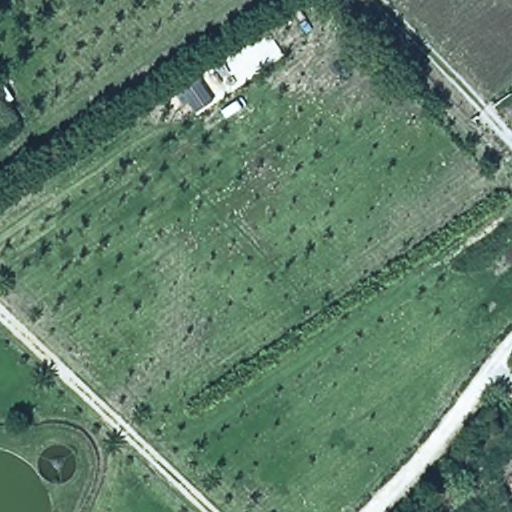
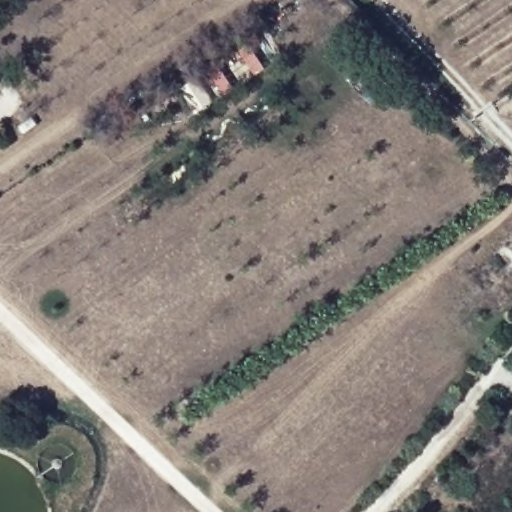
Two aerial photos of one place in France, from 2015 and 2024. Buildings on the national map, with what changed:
unchanged [(511,360),(512,359),(512,361),(511,360)]

